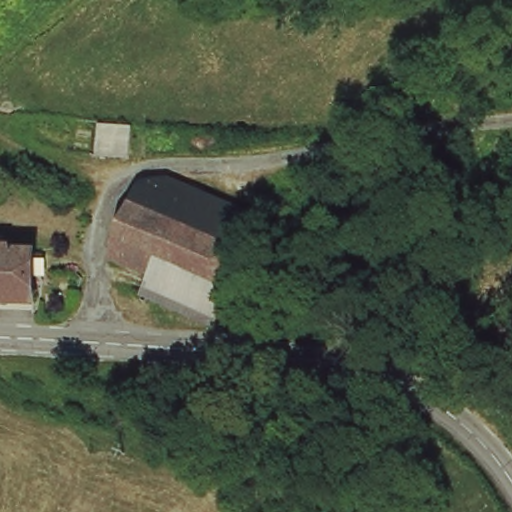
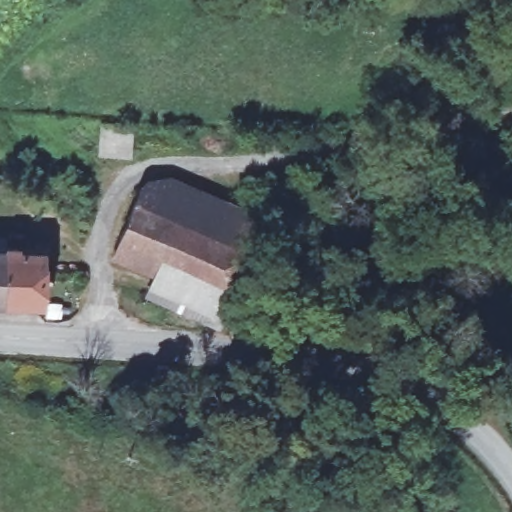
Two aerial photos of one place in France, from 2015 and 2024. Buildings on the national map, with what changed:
unchanged [(126,160),(100,159),(102,126),(130,129),(126,160)]
unchanged [(210,197),(206,208),(268,239),(238,305),(232,303),(219,331),(162,303),(174,270),(131,249),(163,179),(210,197)]
unchanged [(6,312),(0,312),(0,261),(6,261),(6,312)]
unchanged [(6,261),(40,261),(41,312),(6,312),(6,261)]

